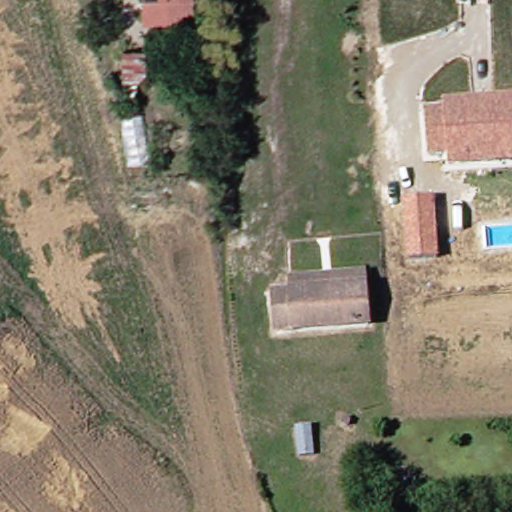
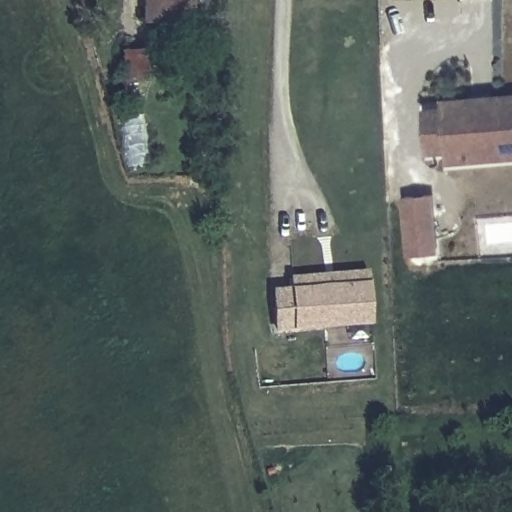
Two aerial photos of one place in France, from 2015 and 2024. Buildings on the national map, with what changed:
unchanged [(146,25),(145,4),(164,3),(163,0),(199,0),(199,5),(199,25),(146,25)]
unchanged [(127,60),(130,89),(114,91),(110,61),(127,60)]
unchanged [(499,155),(451,160),(450,149),(431,150),(427,106),(446,105),(446,97),(512,91),(512,154),(499,155)]
unchanged [(408,258),(403,200),(434,197),(439,256),(408,258)]
unchanged [(282,283),(297,284),(297,275),(362,273),(369,273),(369,284),(371,321),(366,321),(283,323),(282,283)]

